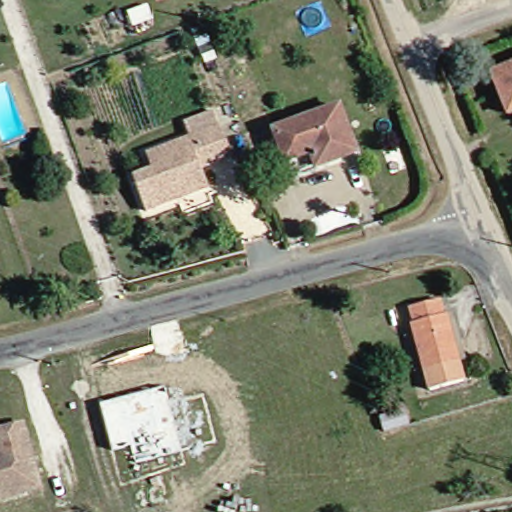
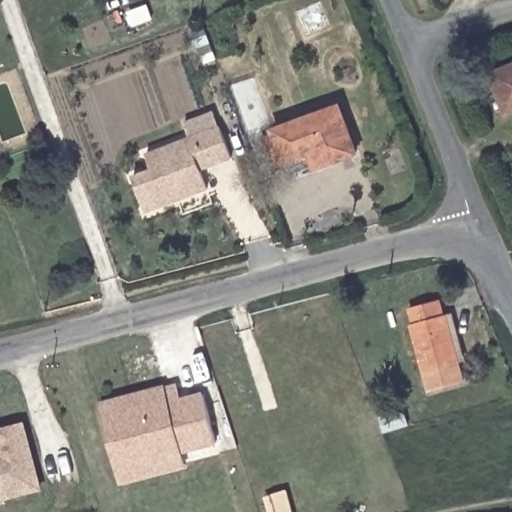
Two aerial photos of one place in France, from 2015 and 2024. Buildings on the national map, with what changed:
unchanged [(485,76),(512,65),(512,107),(497,112),(485,76)]
unchanged [(347,158),(310,172),(304,158),(266,171),(255,138),(330,112),(347,158)]
unchanged [(194,172),(201,192),(138,214),(127,179),(146,171),(141,156),(176,144),(185,141),(179,125),(207,116),(214,132),(224,161),(194,172)]
unchanged [(418,398),(396,332),(399,331),(395,315),(440,300),(447,315),(453,312),(471,358),(463,361),(470,383),(418,398)]
new [(166,385),(171,400),(204,392),(218,445),(184,453),(187,467),(120,484),(99,402),(166,385)]
unchanged [(42,493),(31,497),(9,501),(0,503),(0,424),(9,422),(22,419),(28,440),(40,484),(42,493)]

